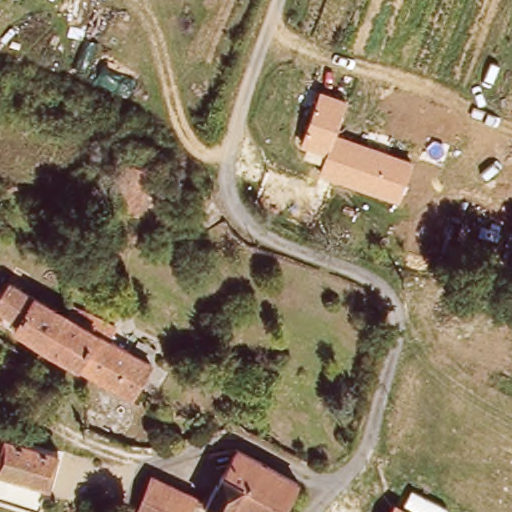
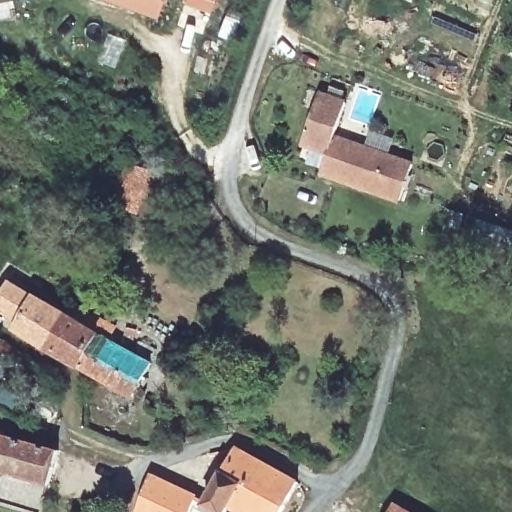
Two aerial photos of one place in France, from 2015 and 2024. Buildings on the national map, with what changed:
new [(9,0),(0,2),(0,0),(9,0)]
new [(113,0),(163,0),(157,15),(113,0)]
unchanged [(348,101),(336,135),(413,162),(399,205),(319,177),(326,156),(300,148),(320,92),(348,101)]
unchanged [(105,205),(116,158),(148,165),(137,213),(105,205)]
unchanged [(39,348),(7,331),(13,320),(0,311),(0,281),(1,279),(58,311),(39,348)]
unchanged [(101,322),(94,333),(143,359),(126,392),(73,365),(39,348),(58,311),(62,302),(101,322)]
unchanged [(40,487),(0,475),(0,441),(50,457),(44,472),(40,487)]
unchanged [(226,511),(208,502),(223,472),(235,445),(256,456),(231,502),(226,511)]
unchanged [(256,456),(299,479),(281,512),(251,512),(231,502),(256,456)]
unchanged [(189,495),(180,512),(135,512),(154,477),(173,487),(189,495)]
unchanged [(390,498),(414,512),(383,512),(390,498)]

